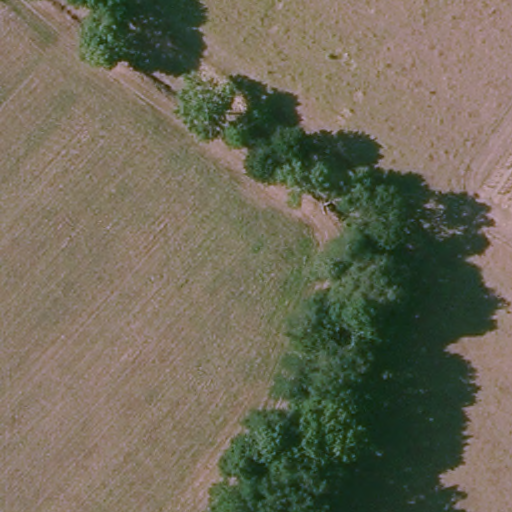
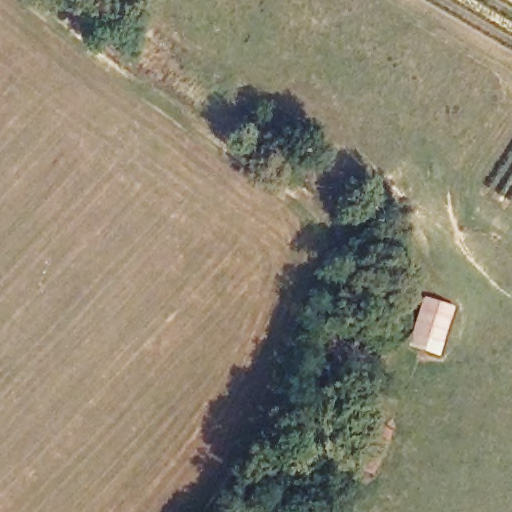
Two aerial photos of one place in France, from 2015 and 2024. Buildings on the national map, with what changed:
new [(423,296),(454,306),(438,355),(407,345),(423,296)]

